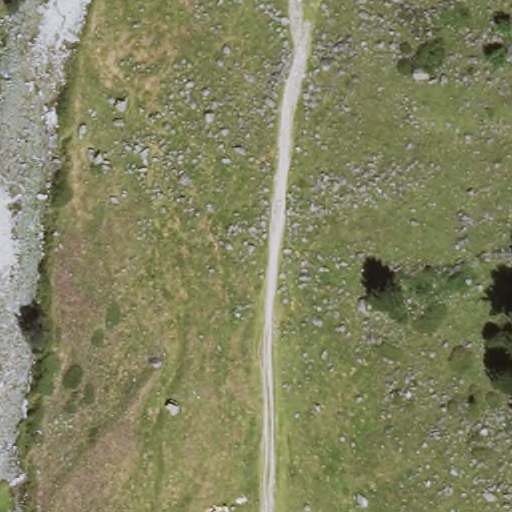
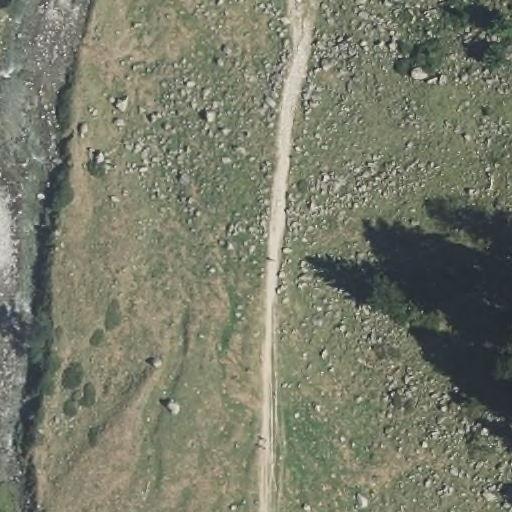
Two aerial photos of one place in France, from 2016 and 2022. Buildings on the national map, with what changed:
[]

